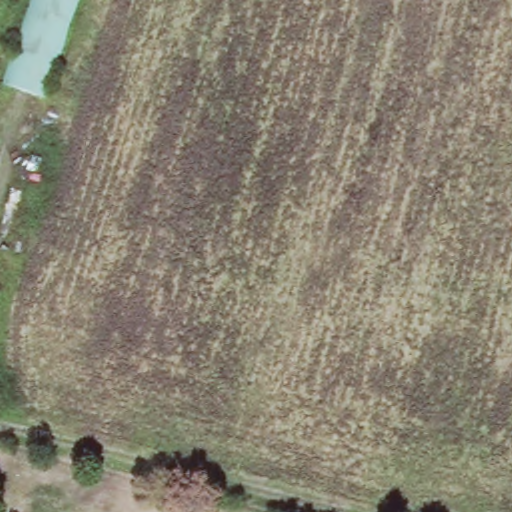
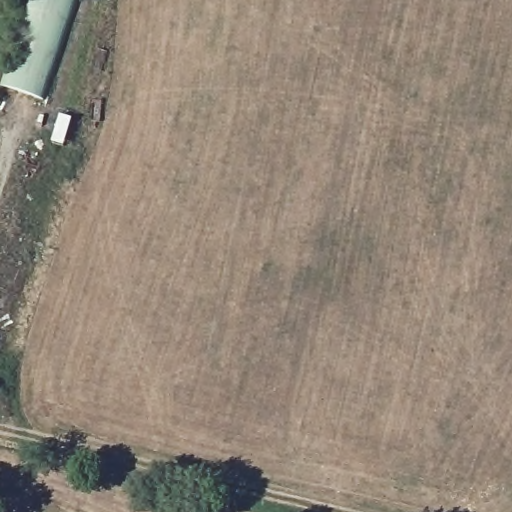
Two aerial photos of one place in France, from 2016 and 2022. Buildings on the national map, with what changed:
unchanged [(5,88),(34,0),(80,0),(45,100),(5,88)]

